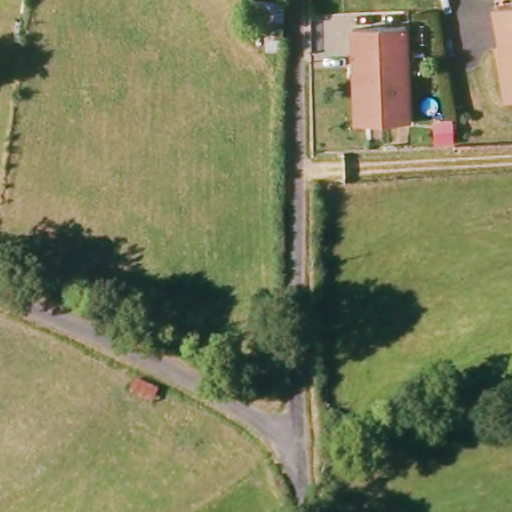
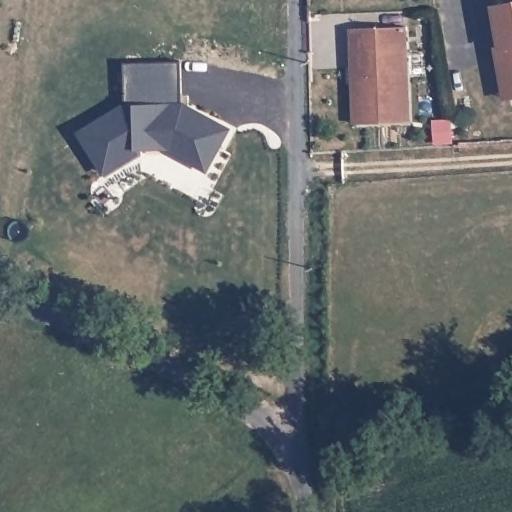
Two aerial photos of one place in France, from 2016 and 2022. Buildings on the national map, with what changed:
unchanged [(501,100),(492,51),(499,49),(492,7),(512,2),(512,98),(501,100)]
unchanged [(354,57),(353,32),(407,31),(409,126),(365,127),(355,127),(354,57)]
new [(196,159),(174,148),(174,142),(146,143),(146,148),(102,179),(77,136),(121,104),(121,64),(181,63),(181,102),(233,130),(223,147),(211,168),(196,159)]

